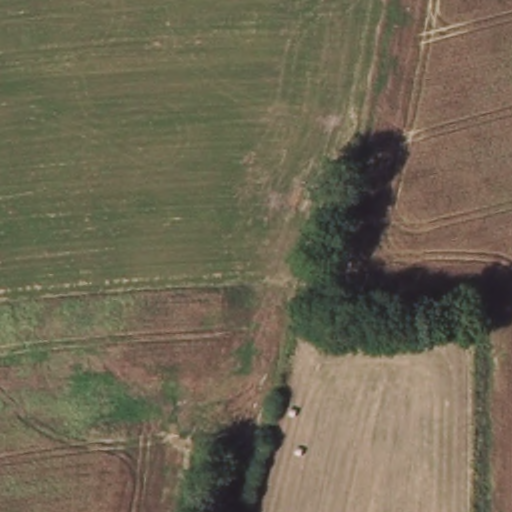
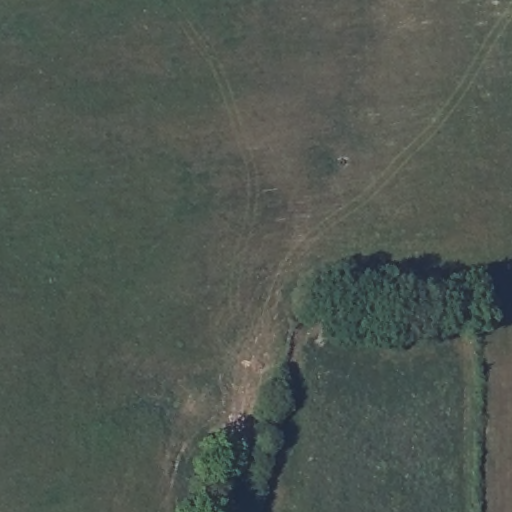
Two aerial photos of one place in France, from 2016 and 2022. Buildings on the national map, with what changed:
[]

